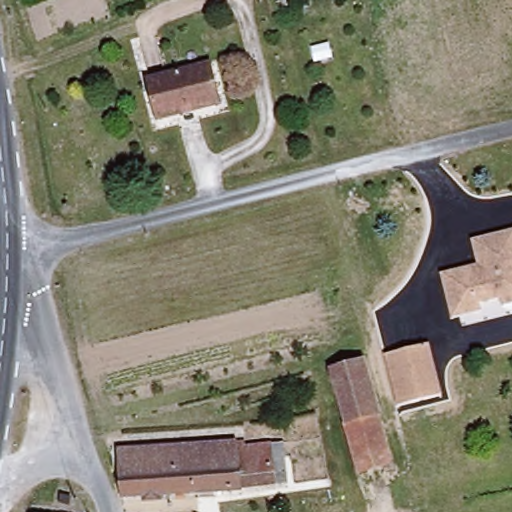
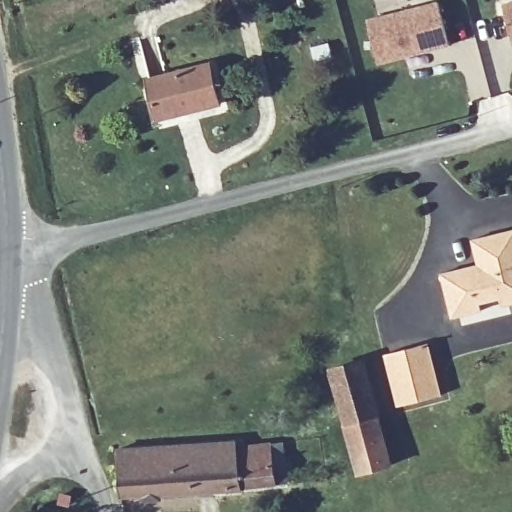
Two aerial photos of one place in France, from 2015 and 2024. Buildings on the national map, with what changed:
new [(435,0),(439,0),(450,41),(380,60),(368,17),(435,0)]
new [(512,0),(512,35),(503,2),(512,0)]
unchanged [(217,103),(155,117),(146,78),(209,62),(217,103)]
unchanged [(501,305),(500,300),(476,305),(478,312),(449,319),(440,272),(475,264),(470,237),(512,230),(512,302),(501,305)]
unchanged [(401,407),(389,356),(425,347),(432,346),(440,377),(445,397),(401,407)]
unchanged [(326,367),(357,357),(389,460),(357,470),(329,378),(326,367)]
unchanged [(111,446),(240,438),(241,448),(265,447),(276,446),(278,480),(269,481),(231,483),(231,487),(114,494),(109,475),(111,446)]

